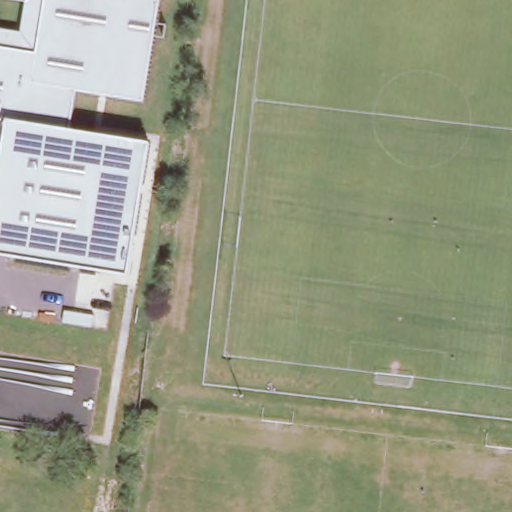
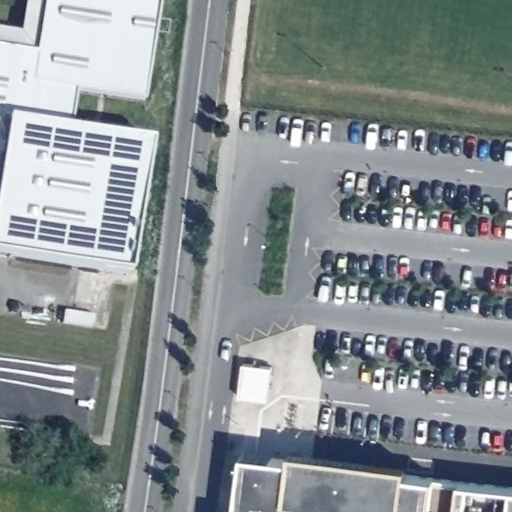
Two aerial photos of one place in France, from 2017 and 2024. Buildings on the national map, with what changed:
unchanged [(23,2),(10,0),(158,0),(141,101),(75,90),(70,117),(66,132),(148,144),(127,276),(0,257),(0,30),(19,32),(23,2)]
new [(272,367),(268,401),(239,397),(243,364),(272,367)]
new [(245,448),(512,479),(512,512),(237,512),(245,448)]

